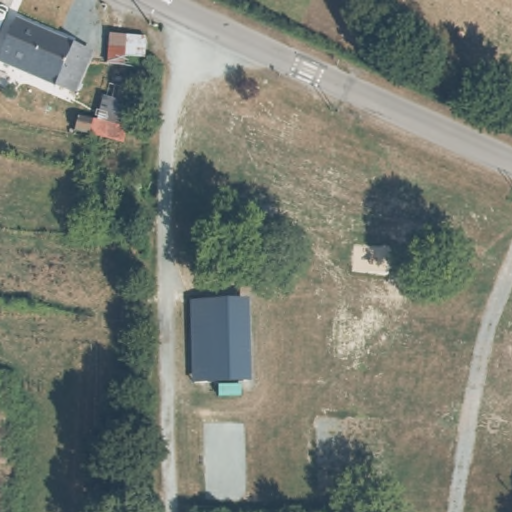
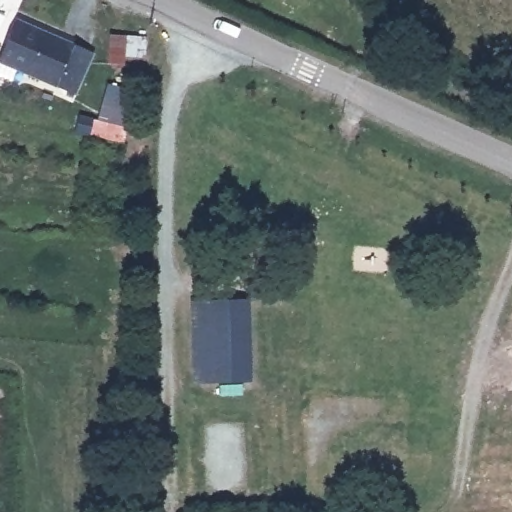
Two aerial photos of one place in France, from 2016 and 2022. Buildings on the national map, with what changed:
unchanged [(42,84),(0,68),(0,18),(0,17),(58,40),(42,84)]
unchanged [(142,61),(123,61),(123,71),(105,70),(107,37),(145,39),(142,61)]
unchanged [(79,49),(62,92),(42,84),(58,40),(79,49)]
unchanged [(249,301),(251,385),(192,386),(189,301),(249,301)]

